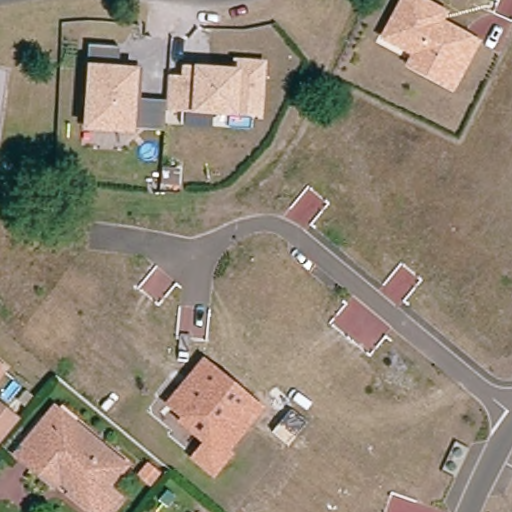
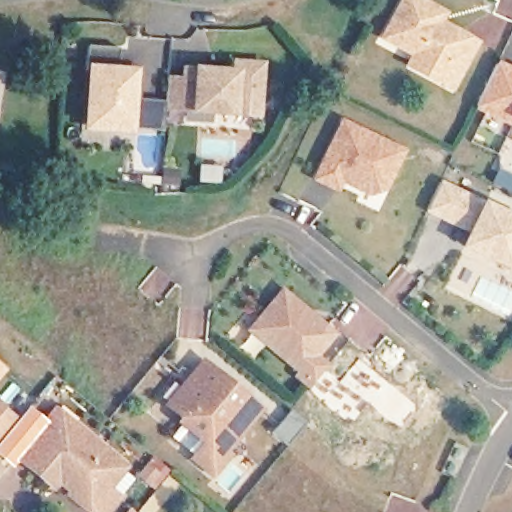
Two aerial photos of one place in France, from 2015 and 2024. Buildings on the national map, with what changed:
unchanged [(428,0),(450,11),(445,20),(482,40),(455,91),(404,66),(410,55),(379,38),(400,0),(428,0)]
unchanged [(88,66),(89,45),(121,47),(119,65),(138,68),(138,97),(165,100),(164,129),(137,125),(136,134),(85,130),(88,66)]
unchanged [(182,76),(182,64),(195,65),(231,68),(232,56),(266,59),(262,117),(238,115),(190,111),(168,111),(170,76),(182,76)]
new [(512,68),(512,129),(475,111),(500,63),(512,68)]
new [(370,194),(344,182),(338,190),(314,179),(342,118),(408,149),(389,189),(370,194)]
new [(508,269),(463,247),(470,232),(454,224),(425,210),(439,183),(468,197),(483,205),(512,219),(512,271),(508,269)]
new [(305,310),(314,318),(334,334),(314,357),(326,367),(308,388),(295,377),(298,373),(263,343),(249,330),(261,315),(282,292),(305,310)]
unchanged [(265,409),(231,449),(235,453),(213,479),(189,459),(201,444),(174,422),(180,416),(164,404),(202,357),(265,409)]
unchanged [(16,421),(0,440),(0,408),(1,409),(16,421)]
new [(290,410),(306,423),(287,446),(271,433),(290,410)]
unchanged [(110,512),(76,512),(63,501),(54,494),(51,497),(28,478),(12,465),(8,462),(45,418),(49,422),(66,435),(96,461),(95,463),(116,479),(101,497),(114,507),(110,512)]

